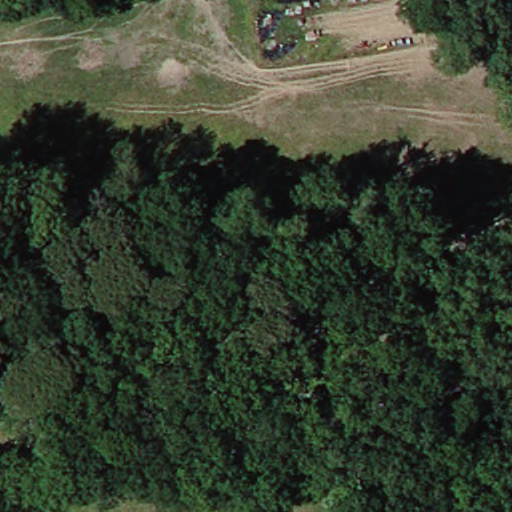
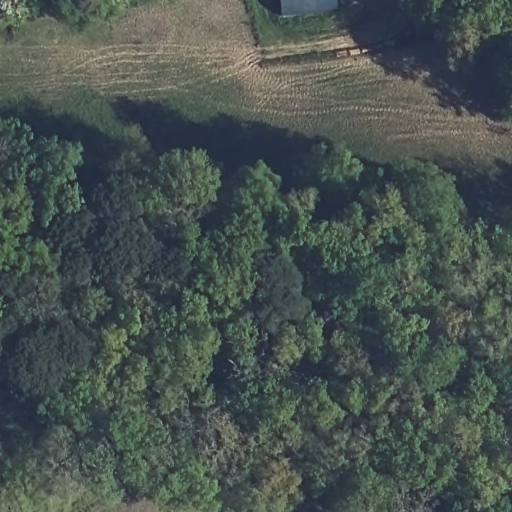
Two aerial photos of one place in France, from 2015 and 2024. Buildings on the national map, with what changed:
new [(281,0),(336,0),(338,8),(283,17),(281,0)]

